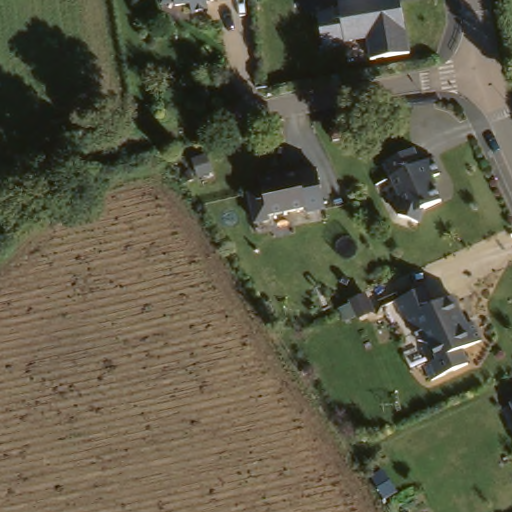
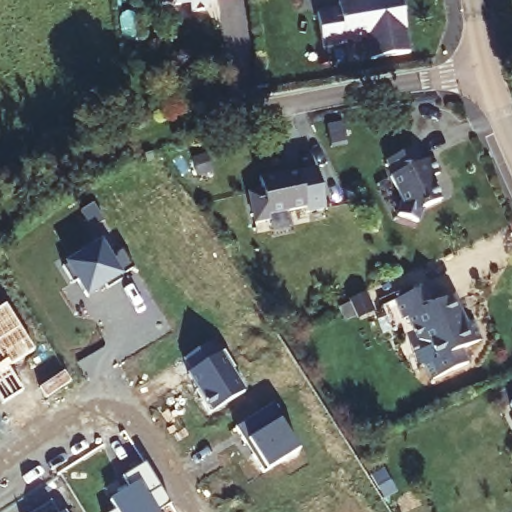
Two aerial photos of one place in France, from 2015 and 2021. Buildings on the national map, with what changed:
unchanged [(157,0),(203,0),(204,9),(187,12),(186,3),(171,5),(171,3),(157,4),(157,0)]
unchanged [(334,14),(333,8),(371,0),(397,0),(398,4),(408,54),(369,63),(364,40),(341,45),(342,48),(319,53),(313,19),(334,14)]
unchanged [(206,169),(201,152),(214,147),(219,165),(206,169)]
unchanged [(416,163),(428,158),(435,174),(425,178),(436,201),(417,210),(412,223),(393,216),(398,203),(386,177),(388,176),(381,161),(409,149),(416,163)]
unchanged [(276,215),(277,220),(263,223),(256,194),(269,191),(267,178),(293,172),(294,175),(306,172),(314,207),(276,215)]
new [(98,200),(105,212),(88,223),(79,211),(98,200)]
new [(104,241),(113,255),(126,246),(138,266),(124,274),(126,277),(111,286),(109,282),(91,294),(82,279),(77,282),(66,265),(104,241)]
unchanged [(462,315),(457,317),(461,327),(474,321),(483,340),(463,350),(469,363),(433,380),(425,364),(438,358),(431,344),(419,340),(408,317),(404,319),(395,300),(424,286),(433,304),(453,295),(462,315)]
unchanged [(366,311),(358,295),(373,289),(381,305),(366,311)]
new [(37,350),(0,372),(0,309),(9,304),(37,350)]
new [(216,340),(224,353),(231,349),(241,366),(238,368),(251,389),(215,411),(206,397),(209,395),(194,371),(198,369),(189,357),(216,340)]
unchanged [(507,403),(512,400),(512,415),(507,403)]
new [(277,404),(287,420),(284,421),(303,451),(267,473),(255,455),(259,453),(251,440),(248,442),(239,427),(277,404)]
new [(112,500),(132,488),(125,476),(148,462),(174,503),(161,510),(162,512),(112,512),(118,509),(112,500)]

